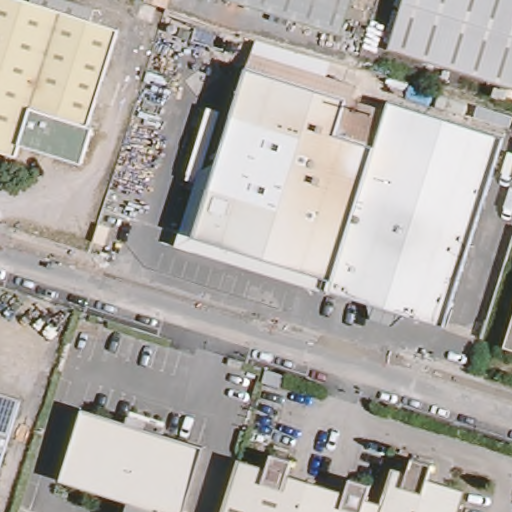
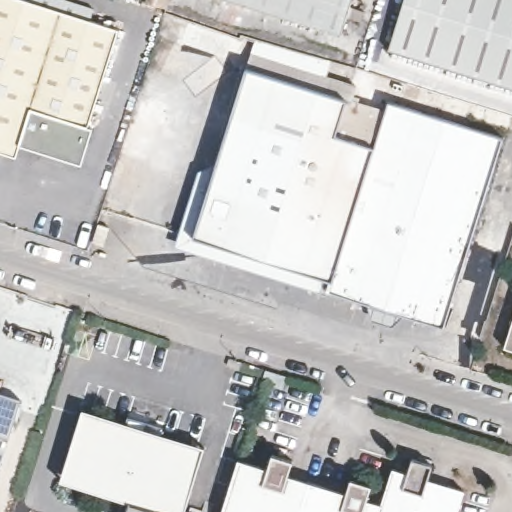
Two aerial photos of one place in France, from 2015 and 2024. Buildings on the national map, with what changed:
unchanged [(35,0),(66,0),(94,9),(91,19),(122,29),(92,127),(96,130),(85,165),(24,147),(20,158),(0,152),(0,0),(24,0),(35,3),(35,0)]
unchanged [(246,0),(349,0),(340,30),(246,0)]
unchanged [(408,0),(512,0),(512,83),(394,46),(408,0)]
unchanged [(196,236),(253,52),(358,84),(353,99),(301,269),(196,236)]
unchanged [(409,99),(359,82),(363,68),(415,85),(409,99)]
unchanged [(448,325),(401,311),(396,315),(381,310),(379,304),(330,289),(333,279),(301,269),(353,99),(387,110),(390,100),(507,136),(448,325)]
unchanged [(512,327),(512,340),(508,338),(512,327)]
unchanged [(286,386),(264,378),(268,365),(291,372),(286,386)]
unchanged [(18,396),(0,456),(0,391),(18,396)]
unchanged [(83,480),(64,474),(84,411),(103,416),(83,480)]
unchanged [(136,496),(83,480),(103,416),(127,423),(131,413),(166,423),(162,434),(204,448),(184,511),(187,512),(130,512),(136,496)]
unchanged [(245,455),(272,463),(276,448),(298,454),(293,469),(351,486),(355,473),(377,478),(372,493),(387,499),(398,464),(414,468),(420,452),(438,458),(434,474),(469,486),(461,512),(227,512),(245,455)]

